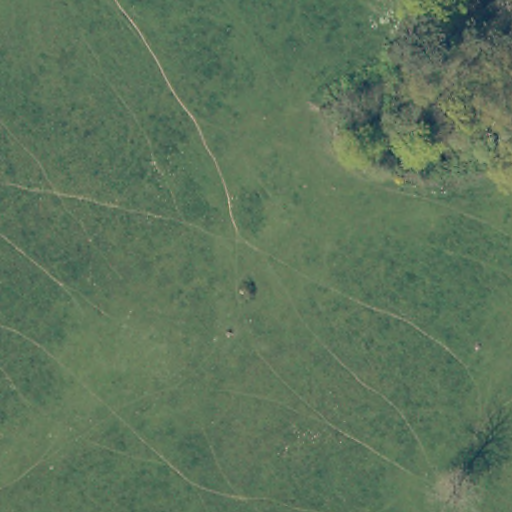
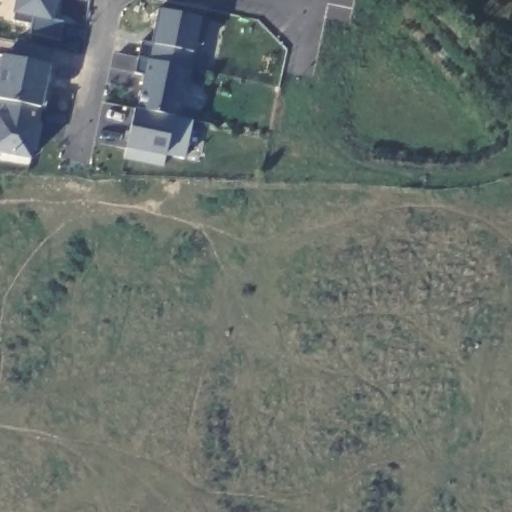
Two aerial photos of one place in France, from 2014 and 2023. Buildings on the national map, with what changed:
new [(66,22),(61,41),(31,35),(35,20),(11,16),(14,0),(58,0),(55,19),(66,22)]
new [(205,46),(196,44),(180,120),(194,123),(186,160),(168,156),(166,168),(125,161),(130,150),(125,149),(131,109),(139,110),(144,76),(137,74),(143,41),(155,45),(161,10),(201,18),(209,20),(205,46)]
new [(33,161),(0,155),(0,101),(0,70),(3,57),(16,60),(18,43),(58,51),(51,66),(33,161)]

